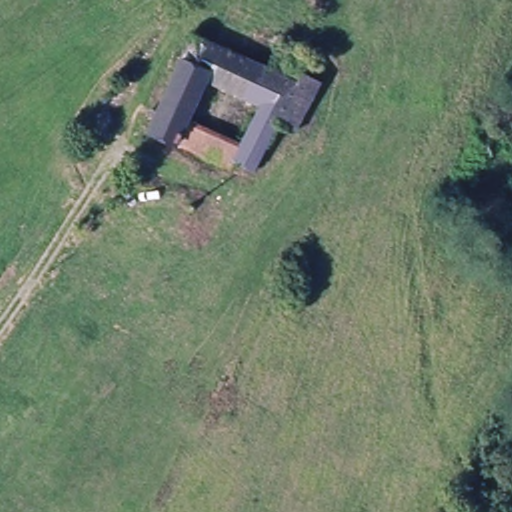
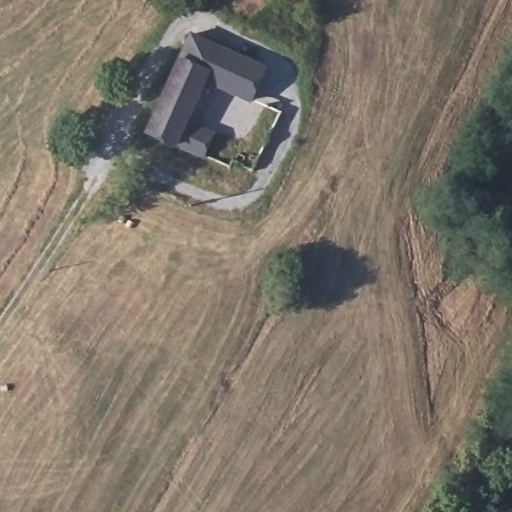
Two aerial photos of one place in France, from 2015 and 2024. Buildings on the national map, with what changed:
unchanged [(270,69),(296,80),(275,125),(252,172),(234,164),(230,170),(151,132),(158,113),(194,36),(270,69)]
unchanged [(296,80),(298,75),(318,85),(294,134),(275,125),(296,80)]

